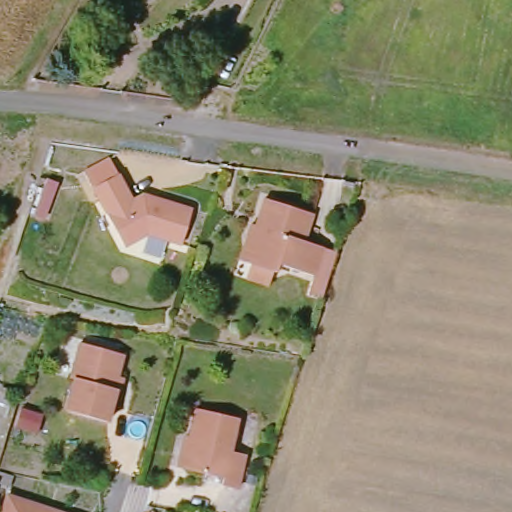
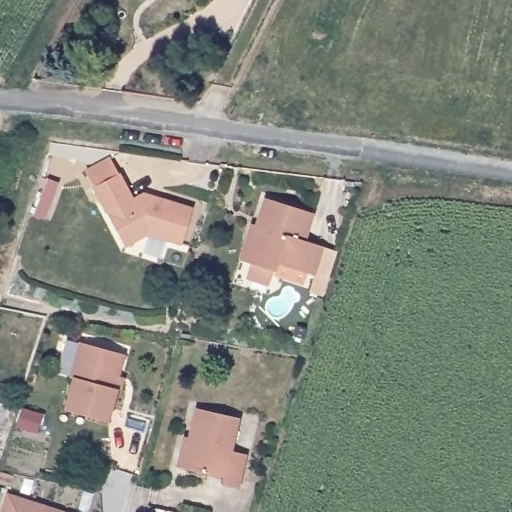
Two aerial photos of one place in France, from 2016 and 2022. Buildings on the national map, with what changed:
unchanged [(133,190),(146,197),(150,194),(191,209),(177,245),(140,233),(118,244),(86,186),(79,173),(107,158),(114,171),(127,194),(133,190)]
unchanged [(52,178),(41,213),(34,211),(45,176),(52,178)]
unchanged [(322,281),(312,278),(276,268),(274,275),(244,267),(235,265),(242,241),(247,224),(258,227),(266,201),(310,215),(303,242),(321,246),(332,250),(325,272),(322,281)]
unchanged [(120,350),(108,384),(113,385),(101,420),(57,406),(66,377),(63,376),(77,336),(120,350)]
unchanged [(180,434),(186,436),(193,406),(235,415),(229,446),(244,450),(235,487),(218,483),(219,477),(182,468),(173,466),(180,434)]
unchanged [(5,492),(61,512),(0,512),(0,505),(5,492)]

